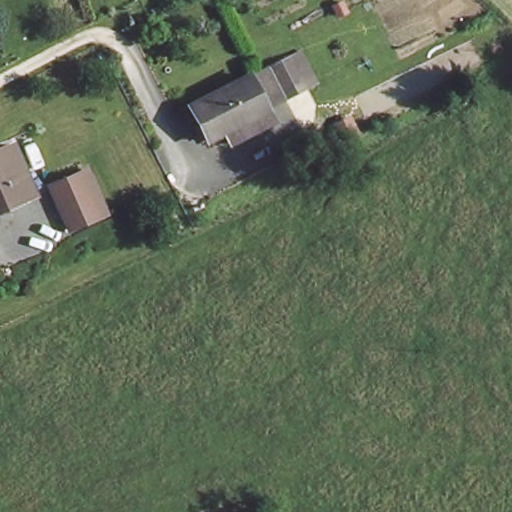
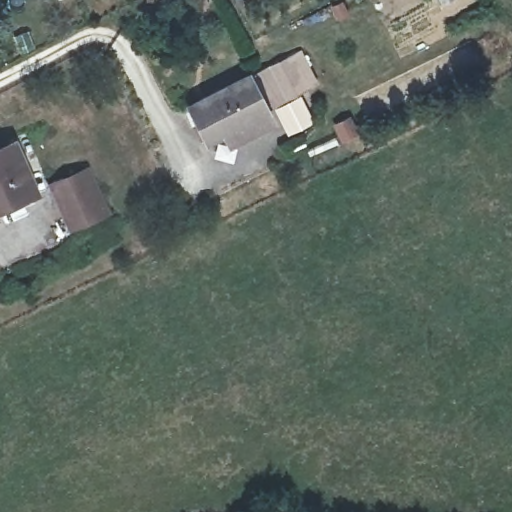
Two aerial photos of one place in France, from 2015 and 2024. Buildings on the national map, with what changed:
unchanged [(249,70),(285,54),(304,88),(268,105),(273,113),(204,150),(183,104),(249,70)]
unchanged [(0,204),(0,150),(8,147),(28,192),(0,204)]
unchanged [(83,169),(105,218),(97,221),(63,234),(55,216),(44,184),(54,180),(76,172),(83,169)]

